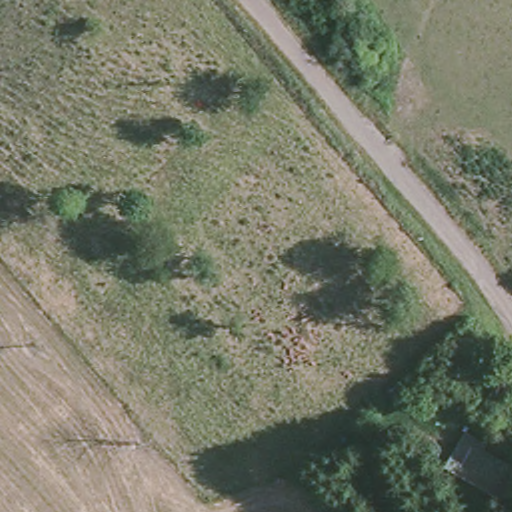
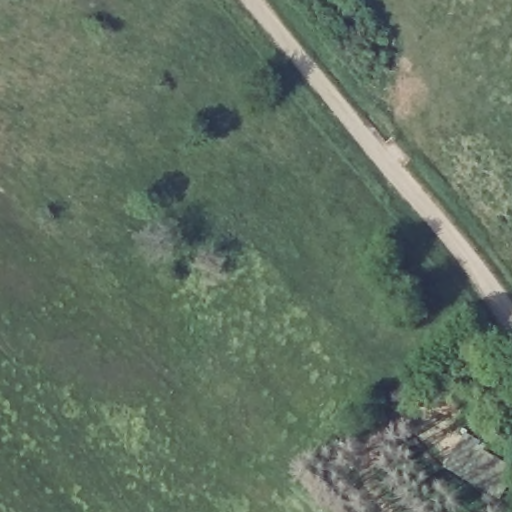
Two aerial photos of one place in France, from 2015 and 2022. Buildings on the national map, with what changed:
unchanged [(512,461),(512,464),(503,487),(472,473),(485,446),(512,461)]

